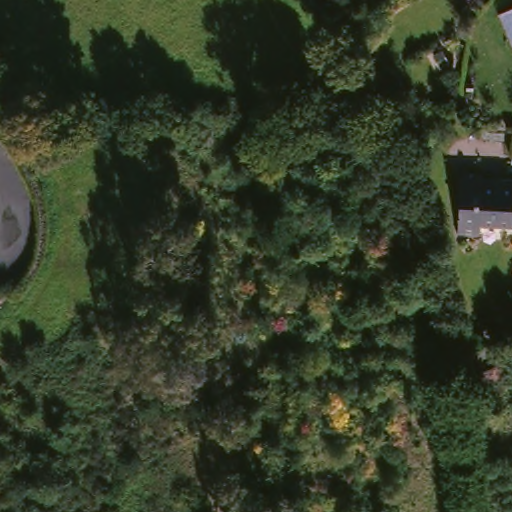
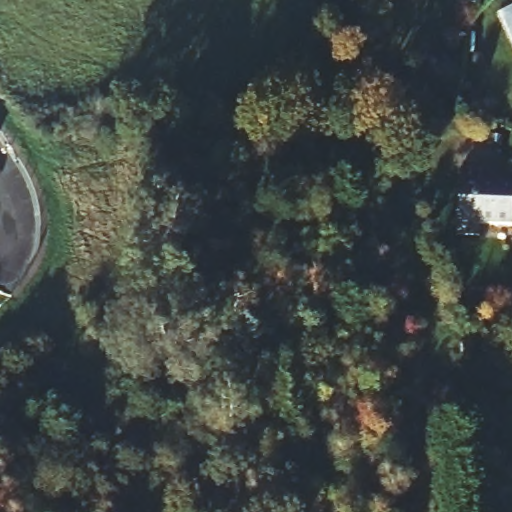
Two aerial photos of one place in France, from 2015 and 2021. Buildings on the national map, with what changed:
unchanged [(509,232),(474,231),(474,241),(454,239),(457,179),(477,180),(476,185),(511,187),(511,185),(512,185),(512,229),(509,229),(509,232)]

